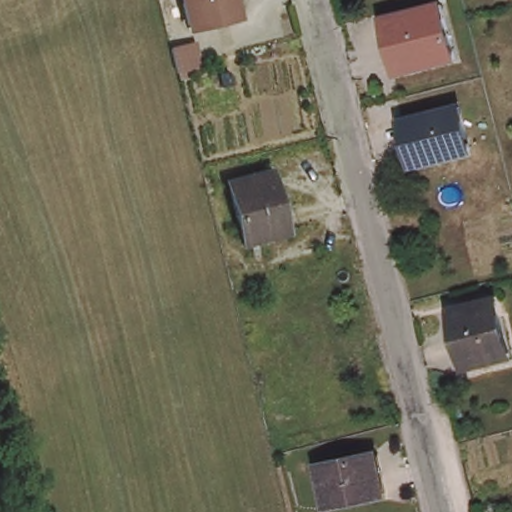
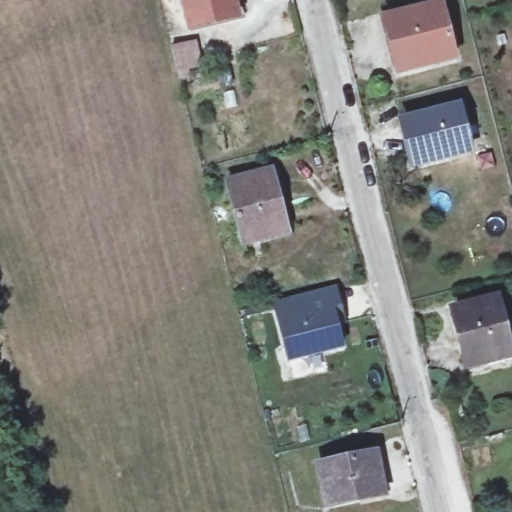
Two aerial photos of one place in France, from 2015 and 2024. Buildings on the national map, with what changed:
unchanged [(185,0),(236,0),(237,7),(190,20),(185,0)]
unchanged [(451,50),(396,65),(390,39),(397,37),(389,9),(422,0),(439,0),(451,50)]
unchanged [(176,77),(171,56),(192,49),(199,71),(176,77)]
unchanged [(402,111),(458,97),(468,139),(412,154),(402,111)]
unchanged [(228,176),(270,165),(285,221),(242,234),(228,176)]
new [(339,310),(343,326),(335,328),(341,350),(288,363),(279,323),(275,305),(300,299),(335,291),(339,310)]
unchanged [(512,342),(490,348),(491,352),(472,357),(457,304),(500,293),(512,342)]
unchanged [(320,461),(375,448),(384,485),(330,498),(320,461)]

